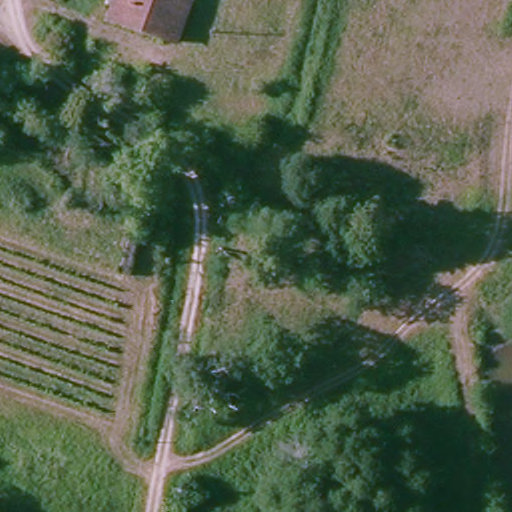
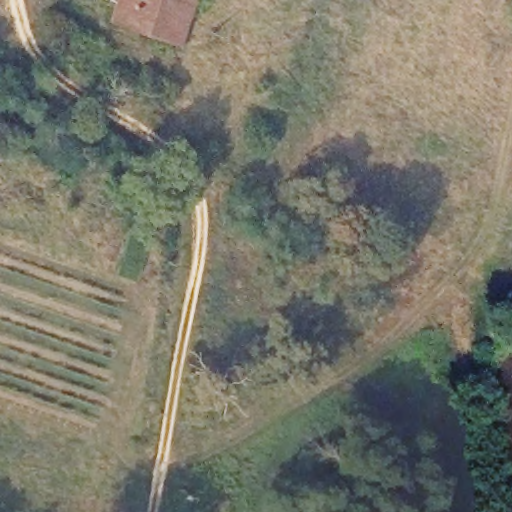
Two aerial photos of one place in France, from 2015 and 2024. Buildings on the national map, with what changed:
unchanged [(176,42),(115,15),(122,0),(195,0),(176,42)]
unchanged [(186,512),(190,487),(223,492),(220,512),(186,512)]

